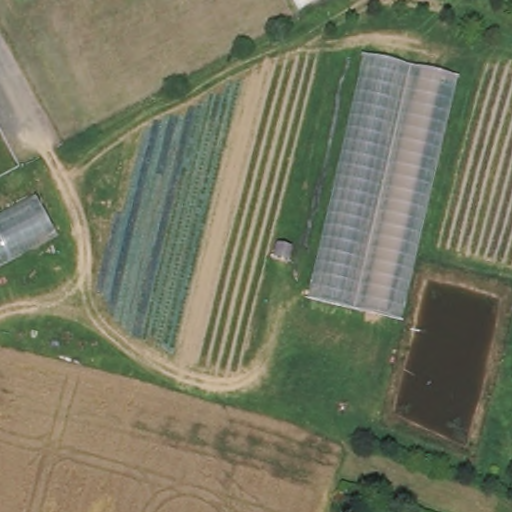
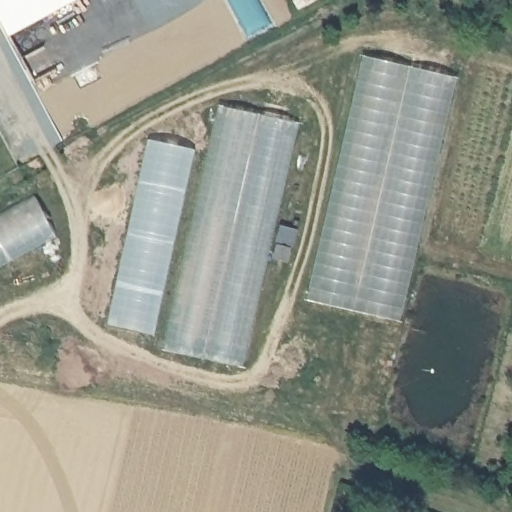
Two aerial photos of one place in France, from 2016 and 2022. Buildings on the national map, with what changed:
unchanged [(458,76),(400,320),(310,300),(360,53),(458,76)]
new [(162,350),(219,104),(300,122),(243,368),(162,350)]
unchanged [(59,238),(0,269),(0,218),(38,197),(59,238)]

